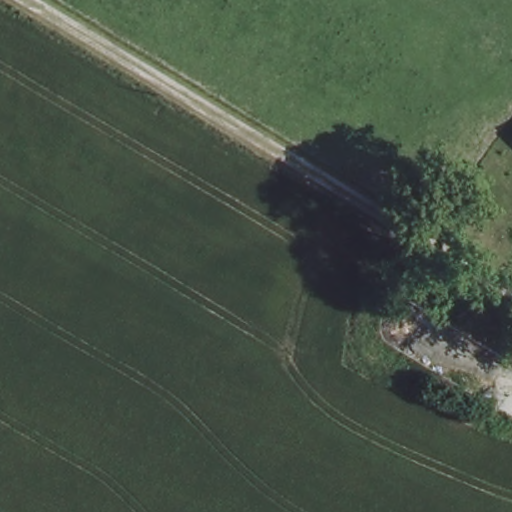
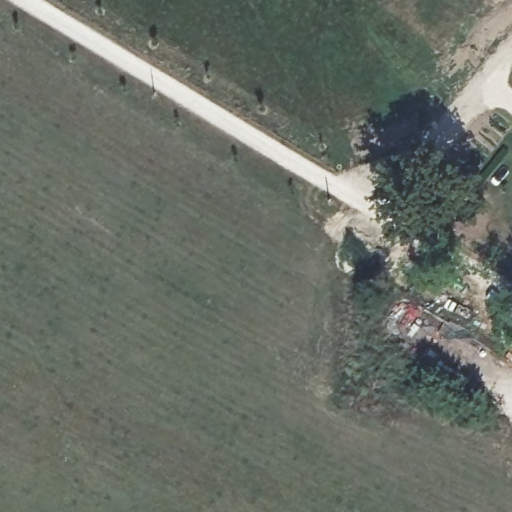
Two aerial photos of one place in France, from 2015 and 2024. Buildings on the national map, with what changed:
[]

